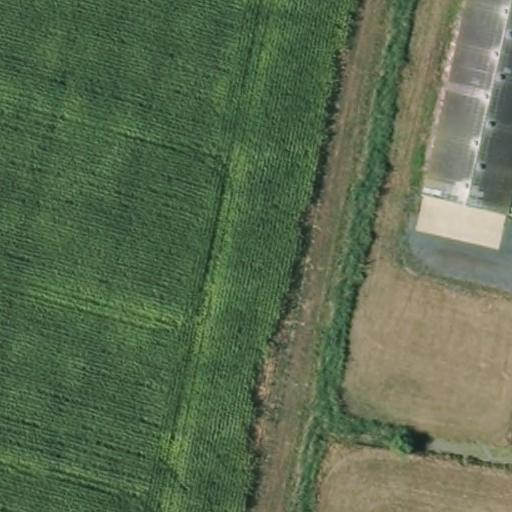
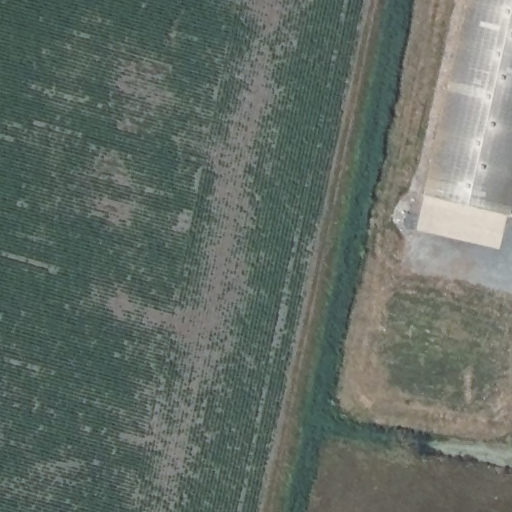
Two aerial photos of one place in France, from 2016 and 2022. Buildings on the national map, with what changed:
unchanged [(424,197),(468,0),(512,0),(512,210),(510,217),(424,197)]

